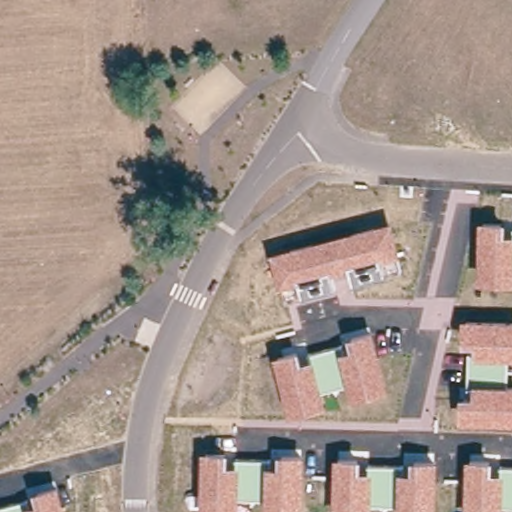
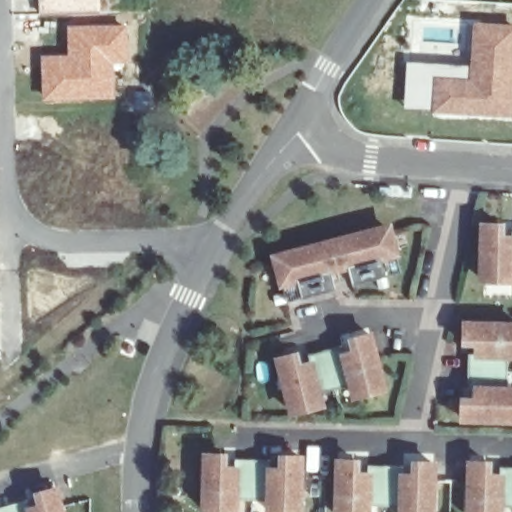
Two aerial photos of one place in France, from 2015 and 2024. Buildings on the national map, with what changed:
new [(40,0),(99,0),(99,10),(40,12),(40,0)]
new [(404,103),(407,61),(470,65),(473,21),(512,24),(512,117),(435,110),(432,105),(404,103)]
new [(126,24),(128,63),(114,63),(115,97),(43,100),(41,55),(68,54),(67,25),(126,24)]
unchanged [(478,220),(505,221),(505,233),(512,234),(512,283),(478,282),(478,220)]
unchanged [(279,287),(270,254),(392,221),(400,255),(402,272),(385,273),(352,282),(348,268),(330,274),(334,288),(302,296),(285,305),(279,287)]
unchanged [(460,396),(472,396),(472,386),(467,389),(468,353),(474,353),(474,345),(461,345),(462,320),(512,322),(512,360),(509,360),(508,385),(512,385),(512,424),(459,422),(460,396)]
unchanged [(273,357),(298,350),(302,361),(313,360),(311,354),(342,345),(344,352),(351,349),(347,336),(373,331),(390,390),(352,401),(346,382),(322,390),(325,406),(288,416),(273,357)]
unchanged [(189,495),(200,493),(201,451),(227,451),(227,463),(235,465),(235,460),(270,460),(270,465),(278,465),(278,453),(303,455),(303,512),(265,512),(264,496),(239,497),(239,512),(200,512),(200,507),(189,508),(189,495)]
unchanged [(334,457),(360,457),(360,469),(367,470),(367,465),(403,466),(403,471),(410,470),(411,460),(436,460),(436,512),(396,512),(396,505),(372,505),(372,512),(333,512),(334,457)]
unchanged [(466,460),(492,460),(492,471),(500,472),(500,466),(512,467),(512,507),(503,507),(503,512),(465,512),(466,460)]
unchanged [(30,506),(36,504),(32,491),(59,485),(67,512),(0,512),(0,508),(27,500),(30,506)]

